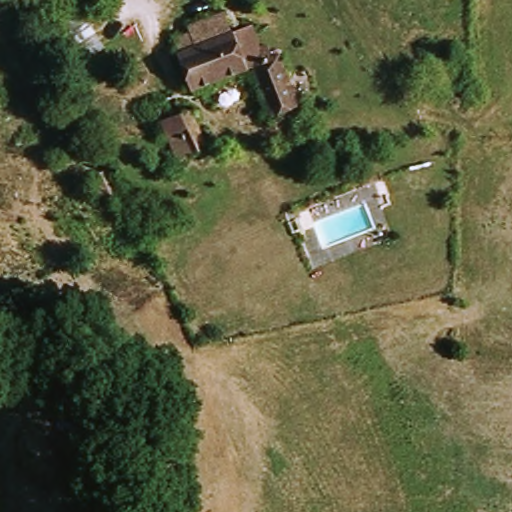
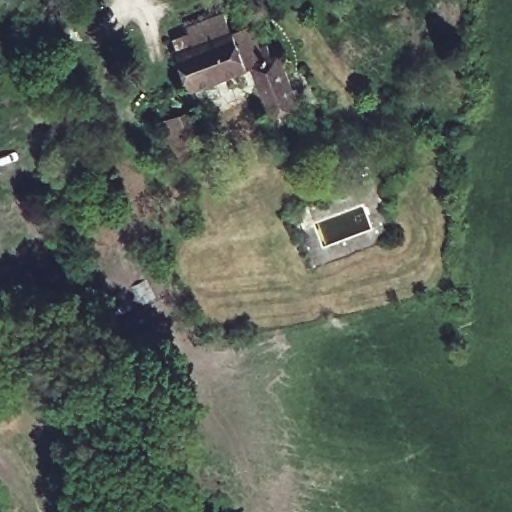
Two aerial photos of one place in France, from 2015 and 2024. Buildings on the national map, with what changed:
unchanged [(174,55),(250,23),(263,51),(272,47),(294,101),(286,105),(267,112),(249,66),(189,91),(174,55)]
unchanged [(197,158),(183,123),(210,112),(225,147),(197,158)]

